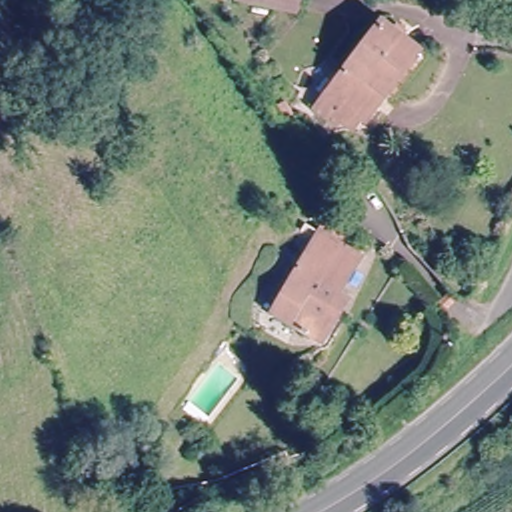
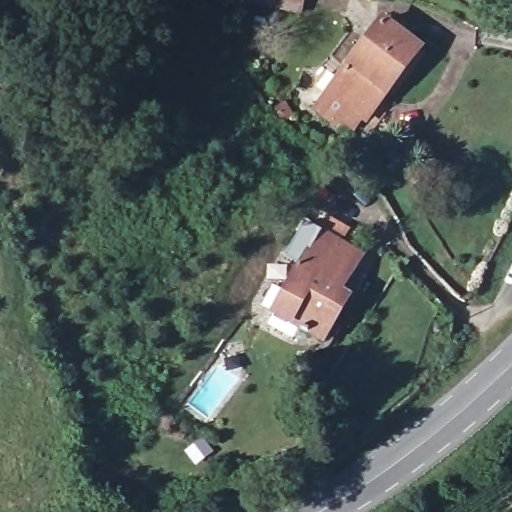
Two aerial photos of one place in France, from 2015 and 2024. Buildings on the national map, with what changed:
unchanged [(249,9),(250,0),(306,0),(302,17),(249,9)]
unchanged [(375,29),(415,60),(359,129),(322,98),(375,29)]
unchanged [(312,223),(364,256),(331,312),(343,321),(330,344),(282,318),(316,261),(300,251),(312,223)]

